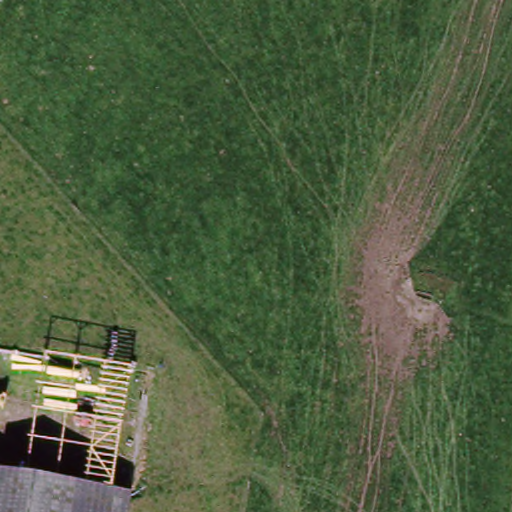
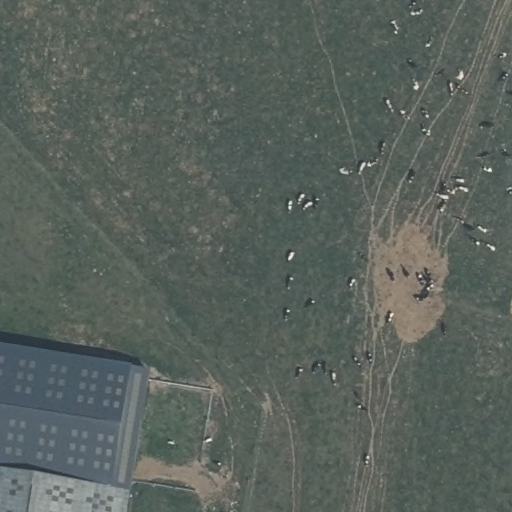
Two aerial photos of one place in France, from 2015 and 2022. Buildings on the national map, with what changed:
new [(151,372),(133,494),(0,475),(0,348),(151,372)]
unchanged [(133,494),(130,512),(0,512),(0,475),(133,494)]

